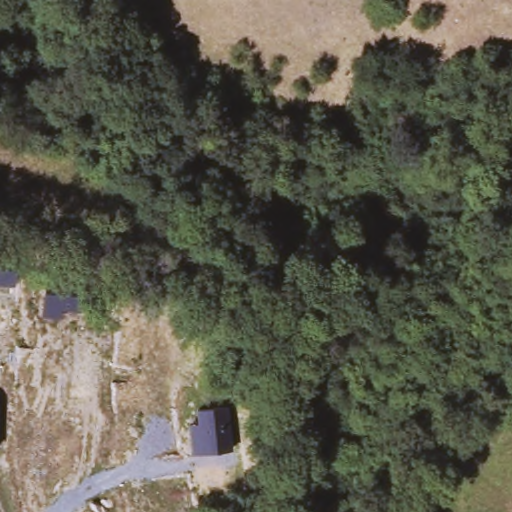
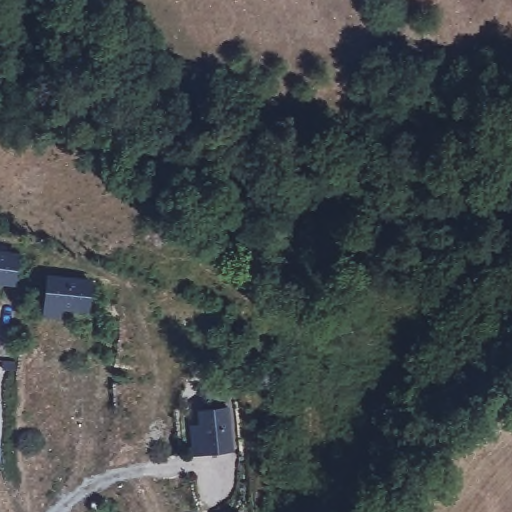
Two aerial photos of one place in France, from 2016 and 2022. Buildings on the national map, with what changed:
new [(0,251),(18,254),(15,285),(0,283),(0,251)]
new [(44,317),(45,307),(48,277),(91,282),(88,312),(61,309),(60,318),(44,317)]
unchanged [(188,428),(197,428),(196,413),(227,411),(230,453),(199,455),(191,456),(188,428)]

